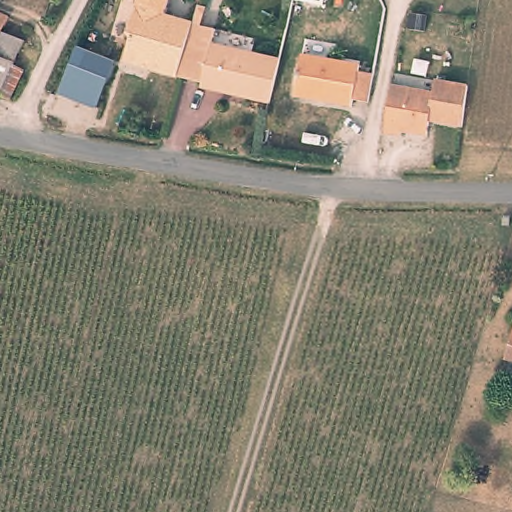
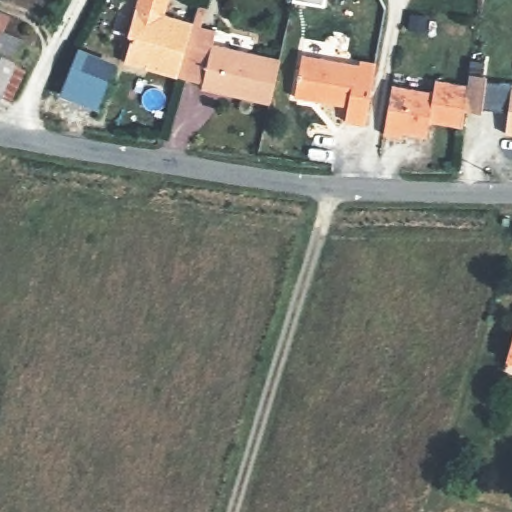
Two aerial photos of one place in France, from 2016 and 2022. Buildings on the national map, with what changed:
unchanged [(126,60),(132,37),(130,32),(139,0),(169,0),(165,13),(195,21),(194,24),(179,75),(126,60)]
unchanged [(0,98),(0,17),(7,20),(1,35),(24,44),(12,69),(22,74),(10,102),(0,98)]
unchanged [(270,102),(257,99),(204,86),(205,82),(179,75),(194,24),(216,29),(213,43),(265,55),(281,58),(270,102)]
unchanged [(77,53),(115,71),(97,111),(59,93),(77,53)]
unchanged [(353,105),(352,111),(295,101),(303,59),(360,69),(358,75),(374,78),(368,108),(353,105)]
unchanged [(490,76),(490,81),(512,83),(512,135),(506,135),(510,110),(485,107),(484,113),(467,110),(471,74),(490,76)]
unchanged [(460,124),(427,120),(425,135),(400,131),(400,136),(382,134),(389,85),(431,91),(432,78),(466,83),(461,124),(460,124)]
unchanged [(507,228),(500,228),(500,218),(507,218),(507,228)]
unchanged [(512,360),(505,358),(512,334),(512,360)]

